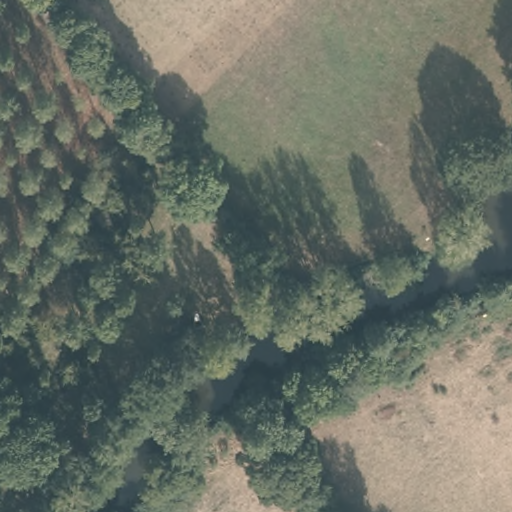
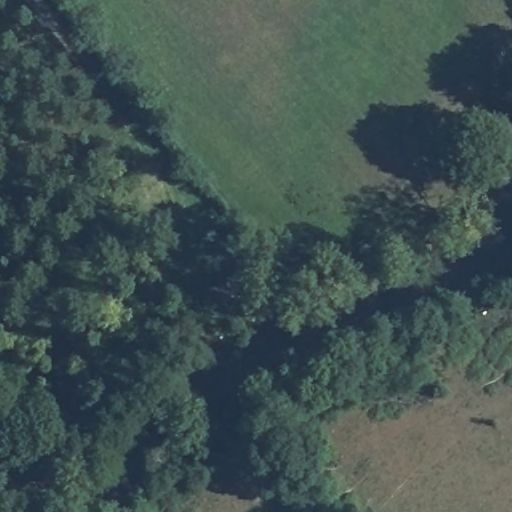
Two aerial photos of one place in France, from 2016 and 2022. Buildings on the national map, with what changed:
[]

